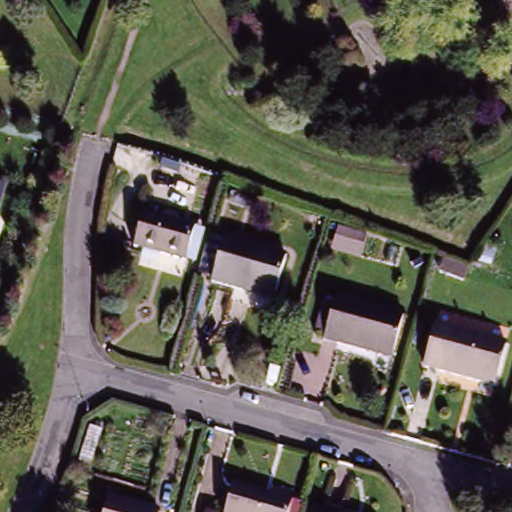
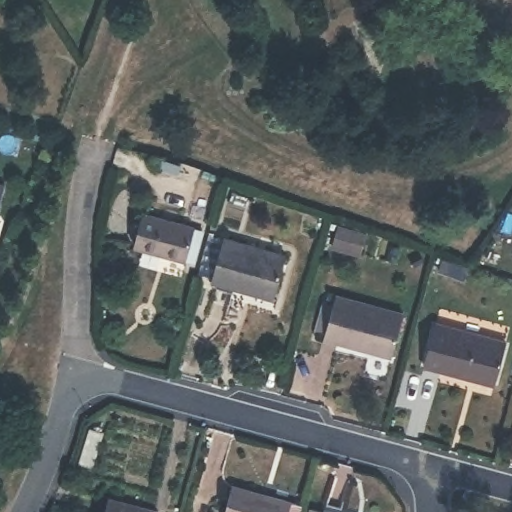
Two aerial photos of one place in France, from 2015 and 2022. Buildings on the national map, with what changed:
unchanged [(131,247),(141,216),(192,232),(200,235),(189,267),(181,264),(131,247)]
unchanged [(241,292),(211,285),(221,242),(283,257),(273,294),(272,300),(241,292)]
unchanged [(455,267),(453,277),(437,272),(440,262),(455,267)]
unchanged [(407,320),(395,363),(328,346),(330,341),(322,338),(330,310),(337,311),(340,302),(407,320)]
unchanged [(420,367),(432,324),(450,329),(505,343),(493,387),(439,372),(420,367)]
unchanged [(286,511),(286,512),(225,512),(230,495),(286,511)]
unchanged [(109,503),(143,512),(107,512),(109,503)]
unchanged [(315,511),(321,512),(315,512),(315,511)]

